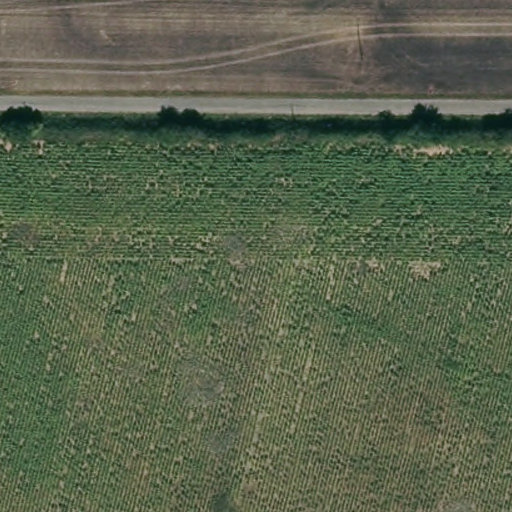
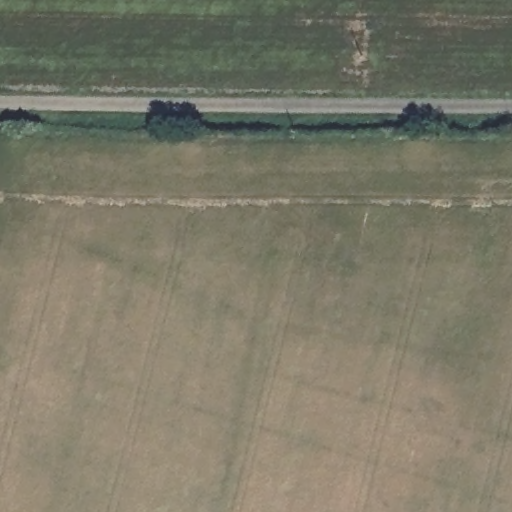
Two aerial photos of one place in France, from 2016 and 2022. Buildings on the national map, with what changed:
[]

